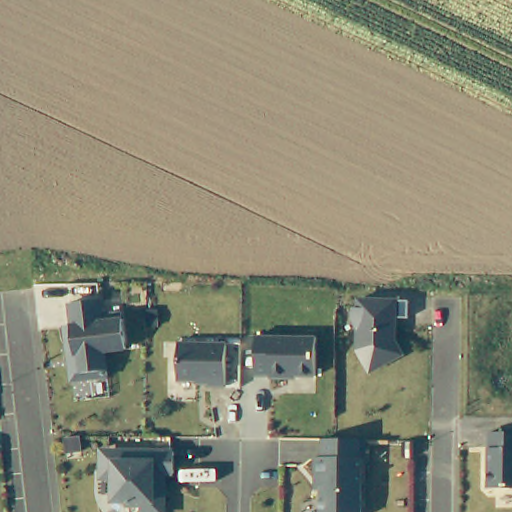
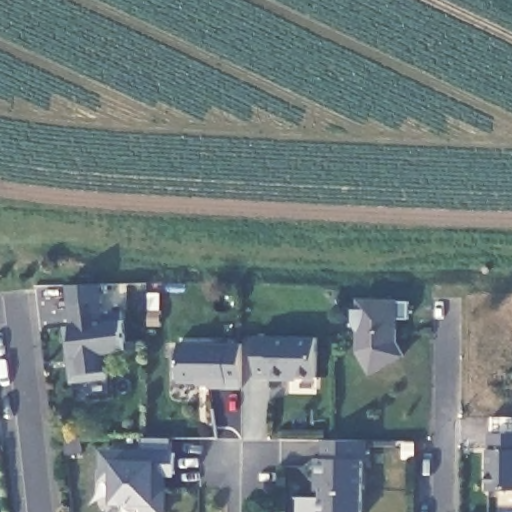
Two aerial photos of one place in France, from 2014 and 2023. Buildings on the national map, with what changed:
unchanged [(69,376),(65,351),(72,350),(65,299),(96,295),(99,316),(120,314),(123,343),(101,346),(104,364),(105,372),(69,376)]
unchanged [(408,300),(407,317),(392,317),(392,327),(395,327),(394,340),(401,354),(367,371),(356,348),(357,330),(352,321),(353,306),(358,306),(358,297),(408,300)]
unchanged [(316,330),(316,369),(289,369),(289,372),(271,372),(271,369),(256,369),(256,330),(316,330)]
unchanged [(205,381),(205,376),(175,375),(175,336),(224,337),(223,381),(205,381)]
unchanged [(512,481),(491,481),(491,424),(512,425),(512,481)]
unchanged [(361,452),(357,452),(357,512),(318,512),(318,469),(312,469),(312,451),(318,451),(318,432),(361,433),(361,452)]
unchanged [(165,512),(140,512),(140,510),(124,509),(125,505),(111,504),(110,482),(99,482),(99,450),(174,450),(173,478),(165,479),(165,512)]

